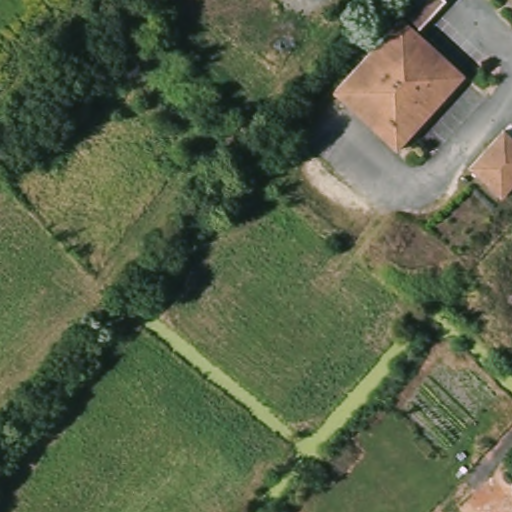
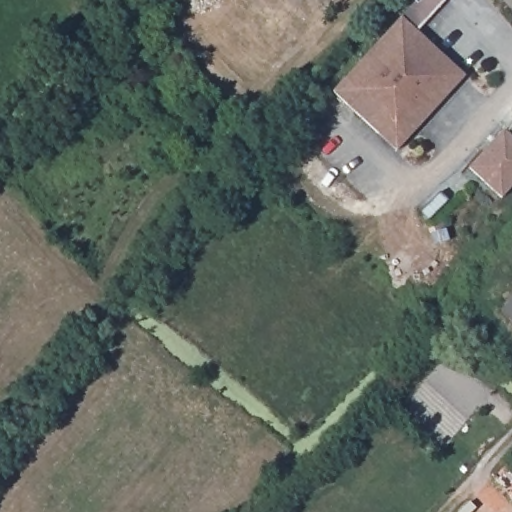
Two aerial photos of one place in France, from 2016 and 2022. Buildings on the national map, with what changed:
unchanged [(418,4),(422,0),(443,0),(444,0),(414,31),(462,76),(394,150),(330,91),(414,1),(418,4)]
unchanged [(412,0),(422,0),(418,4),(414,1),(412,0)]
unchanged [(478,159),(494,140),(498,135),(501,131),(512,142),(512,186),(500,199),(467,170),(478,159)]

